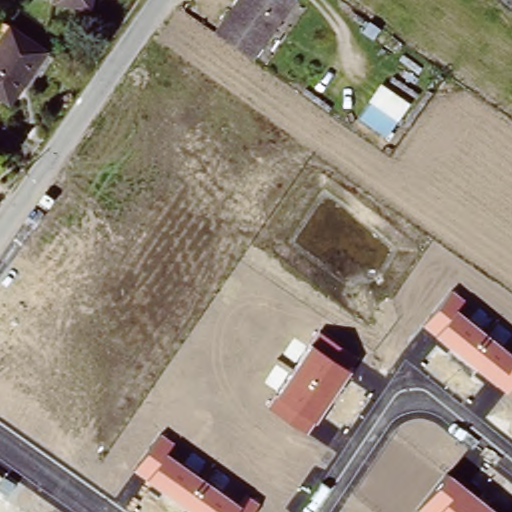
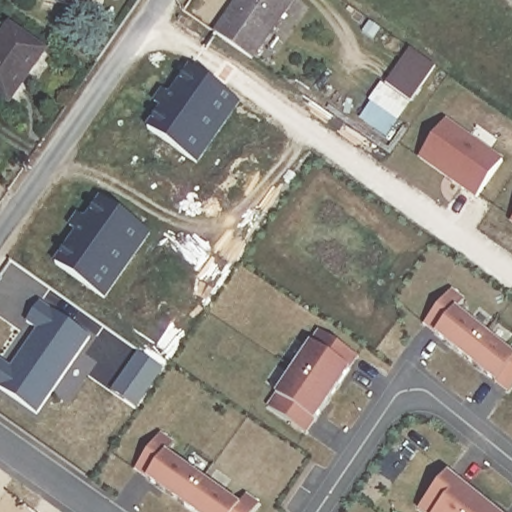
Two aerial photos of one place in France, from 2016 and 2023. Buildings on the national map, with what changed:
unchanged [(83,4),(58,0),(84,0),(83,4)]
unchanged [(216,38),(243,0),(294,0),(251,62),(216,38)]
unchanged [(23,74),(6,100),(0,96),(0,35),(6,25),(51,52),(33,80),(23,74)]
new [(412,103),(388,141),(359,120),(370,103),(368,101),(381,83),(385,86),(409,49),(434,67),(412,103)]
new [(198,163),(147,128),(161,107),(152,103),(163,88),(171,94),(189,68),(241,103),(198,163)]
new [(443,122),(500,162),(475,198),(418,159),(443,122)]
new [(106,299),(54,264),(75,233),(67,227),(77,213),(86,220),(100,199),(151,235),(106,299)]
new [(512,218),(512,222),(510,221),(512,218)]
unchanged [(424,325),(453,289),(465,299),(456,309),(512,354),(512,385),(508,391),(424,325)]
new [(0,390),(0,359),(11,368),(36,330),(25,323),(39,303),(90,339),(37,414),(0,390)]
unchanged [(269,405),(319,331),(356,356),(307,431),(269,405)]
unchanged [(161,432),(174,441),(166,452),(241,506),(249,494),(260,502),(253,512),(192,512),(133,470),(161,432)]
unchanged [(448,472),(498,512),(423,512),(417,507),(448,472)]

